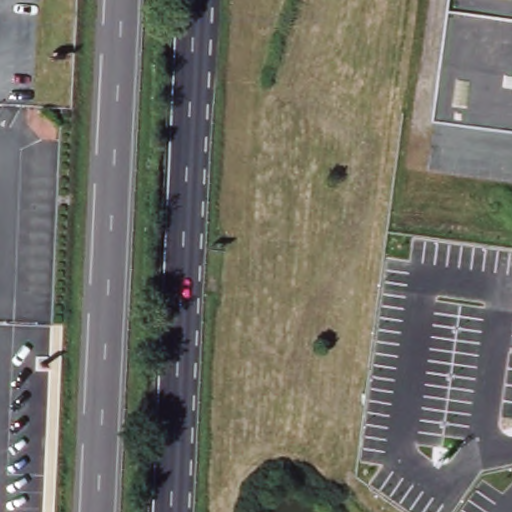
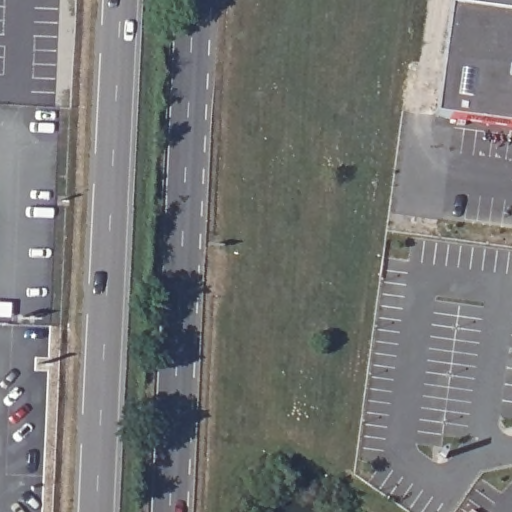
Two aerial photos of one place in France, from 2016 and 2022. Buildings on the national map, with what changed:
unchanged [(455,0),(512,0),(512,118),(441,107),(455,0)]

